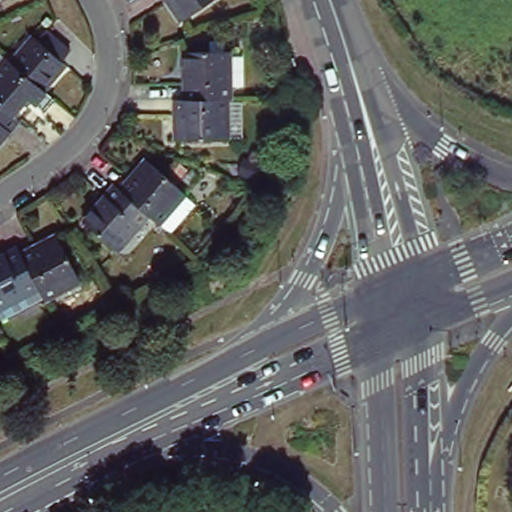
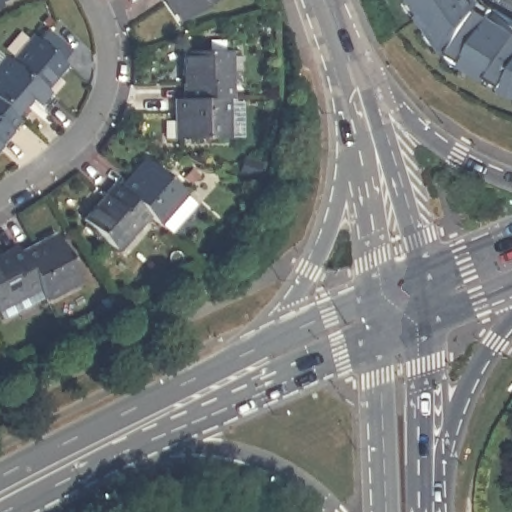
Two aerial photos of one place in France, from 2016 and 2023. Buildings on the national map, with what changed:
unchanged [(168,0),(213,0),(181,21),(168,0)]
new [(487,14),(491,9),(512,23),(512,88),(450,49),(436,27),(433,28),(422,14),(426,11),(417,0),(473,0),(482,10),(487,14)]
unchanged [(32,35),(38,41),(48,30),(68,47),(58,58),(64,63),(43,88),(10,60),(32,35)]
unchanged [(180,52),(224,51),(225,97),(222,97),(181,99),(180,52)]
unchanged [(25,99),(13,114),(0,104),(0,61),(5,55),(10,60),(43,88),(45,90),(33,105),(25,99)]
unchanged [(223,138),(172,140),(171,99),(181,99),(222,97),(223,138)]
unchanged [(0,104),(13,114),(19,119),(0,140),(0,104)]
unchanged [(147,160),(192,198),(165,229),(158,222),(149,215),(119,190),(147,160)]
unchanged [(116,251),(83,221),(114,185),(119,190),(149,215),(116,251)]
unchanged [(60,235),(84,280),(50,298),(44,287),(25,252),(60,235)]
unchanged [(0,309),(0,258),(23,246),(25,252),(44,287),(0,310),(0,309)]

